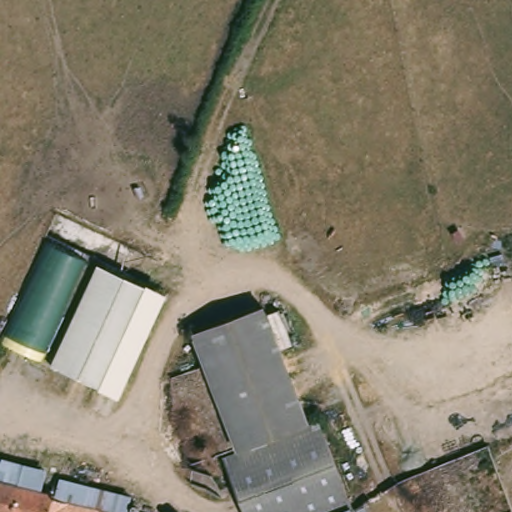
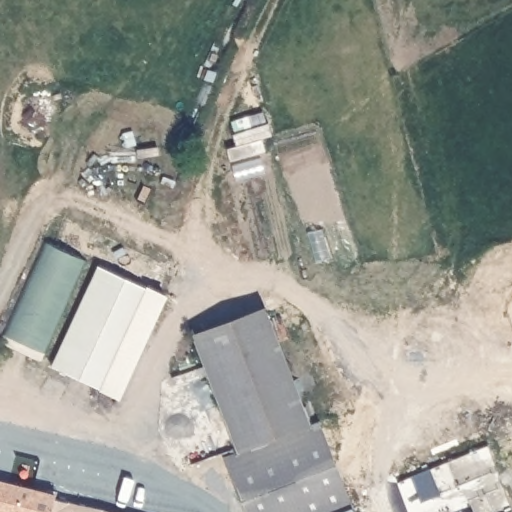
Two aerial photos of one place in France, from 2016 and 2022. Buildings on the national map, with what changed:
unchanged [(3,346),(50,246),(92,266),(47,366),(3,346)]
unchanged [(147,289),(100,389),(52,367),(99,266),(147,289)]
unchanged [(202,331),(264,307),(265,306),(266,308),(310,424),(240,452),(234,439),(200,351),(194,335),(202,331)]
unchanged [(354,512),(245,512),(225,458),(240,452),(310,424),(318,421),(322,431),(354,512)]
unchanged [(55,495),(56,491),(59,484),(60,479),(77,484),(105,491),(131,498),(128,509),(127,512),(0,512),(0,481),(20,487),(55,495)]

